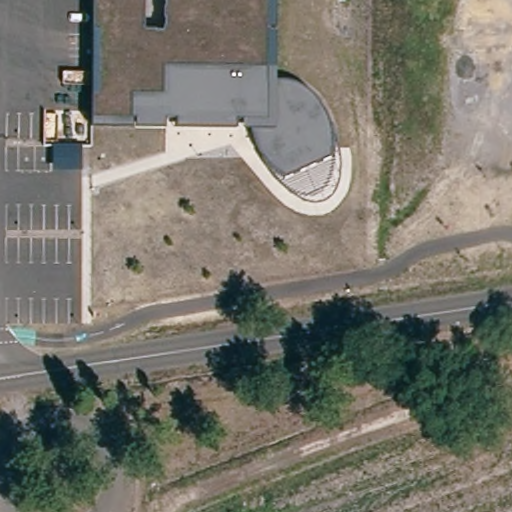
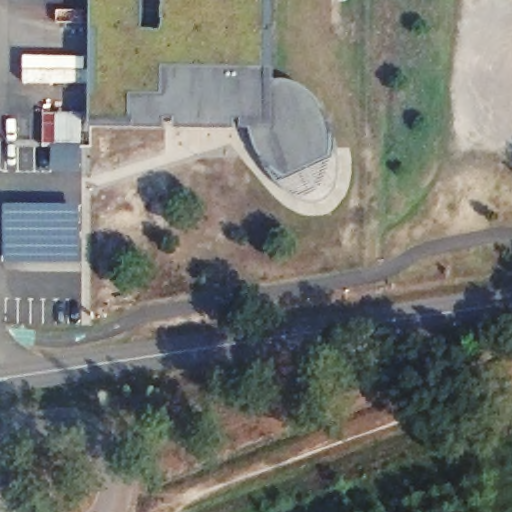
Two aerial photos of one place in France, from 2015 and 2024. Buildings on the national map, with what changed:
unchanged [(250,122),(91,119),(91,94),(92,30),(93,0),(271,0),(270,82),(277,82),(282,81),(292,82),(301,86),(310,92),(316,98),(321,105),(327,116),(329,121),(331,127),(332,131),(333,140),(333,150),(332,159),(283,180),(277,175),(270,168),(263,160),(259,154),(256,146),(252,134),(250,122)]
unchanged [(277,82),(270,82),(271,0),(278,0),(277,82)]
unchanged [(80,165),(52,165),(52,145),(80,145),(80,165)]
new [(6,199),(81,200),(81,256),(5,255),(6,199)]

